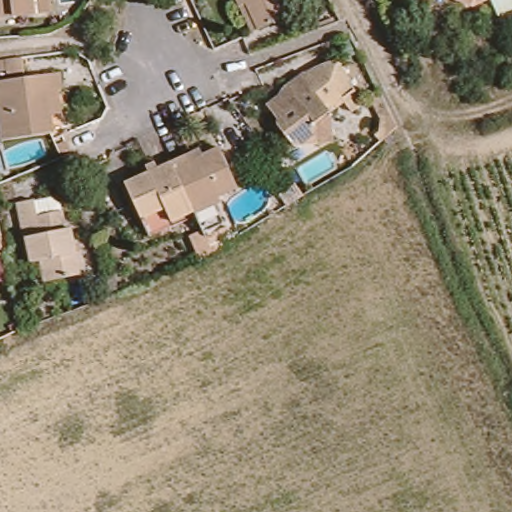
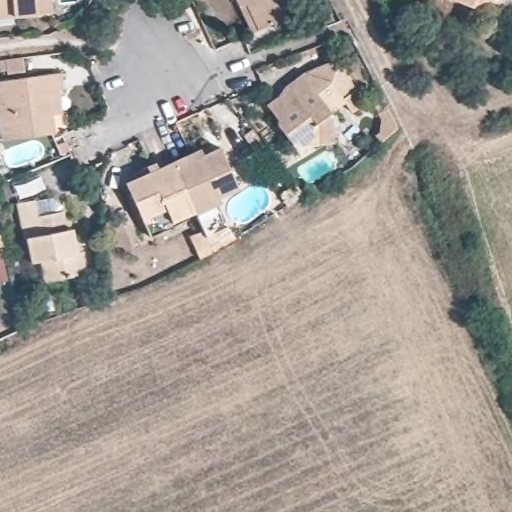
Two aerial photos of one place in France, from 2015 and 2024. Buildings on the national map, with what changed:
unchanged [(47,15),(0,21),(0,0),(46,0),(47,15)]
unchanged [(244,5),(245,5),(243,0),(288,0),(295,15),(264,29),(264,28),(256,32),(244,5)]
unchanged [(434,1),(432,0),(435,0),(434,1)]
unchanged [(474,9),(450,0),(478,0),(474,9)]
unchanged [(487,3),(480,0),(494,0),(487,3)]
unchanged [(318,143),(293,145),(277,126),(279,119),(268,105),(281,95),(286,86),(304,73),(333,61),(343,63),(356,89),(362,100),(349,109),(342,102),(328,113),(330,141),(318,143)]
unchanged [(23,75),(6,77),(5,73),(0,74),(0,65),(3,64),(21,62),(23,75)]
unchanged [(0,139),(0,84),(59,77),(62,93),(56,93),(59,117),(49,118),(51,137),(0,143),(0,139)]
unchanged [(378,136),(369,128),(379,117),(374,106),(383,101),(390,116),(392,120),(378,136)]
unchanged [(63,141),(67,149),(59,153),(55,145),(63,141)]
unchanged [(226,141),(243,180),(196,202),(179,162),(226,141)]
unchanged [(155,232),(146,213),(131,178),(176,156),(179,162),(196,202),(198,205),(177,215),(179,220),(155,232)]
unchanged [(70,226),(75,252),(81,251),(85,272),(43,280),(39,260),(28,262),(23,236),(20,237),(13,200),(31,196),(32,197),(46,194),(61,204),(62,209),(65,227),(70,226)]

